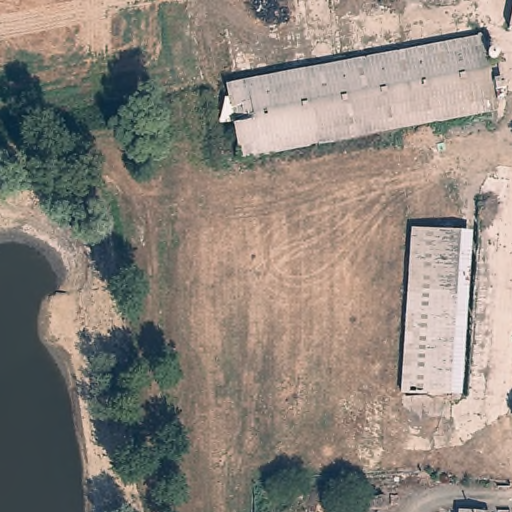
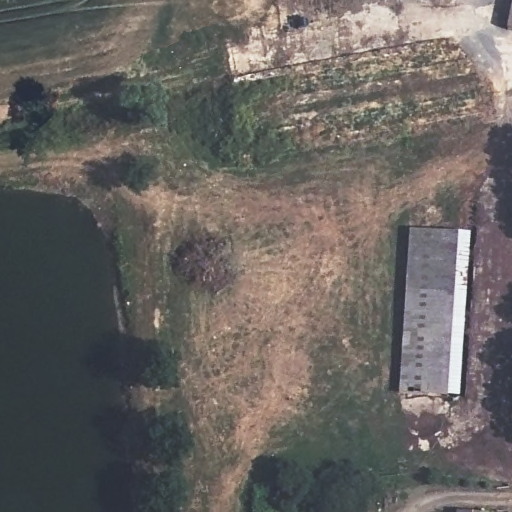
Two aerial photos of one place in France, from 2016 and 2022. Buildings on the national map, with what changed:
unchanged [(506,34),(512,2),(512,35),(506,34)]
demolished [(504,75),(507,88),(493,91),(497,110),(241,159),(227,86),(482,36),(490,78),(504,75)]
unchanged [(404,402),(418,232),(441,233),(427,404),(404,402)]
unchanged [(427,404),(441,233),(464,234),(449,406),(427,404)]

